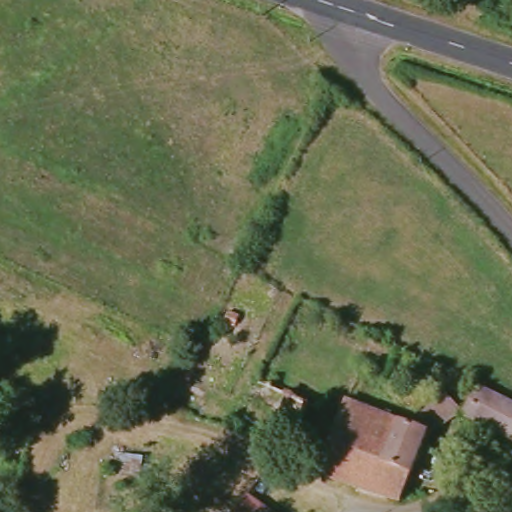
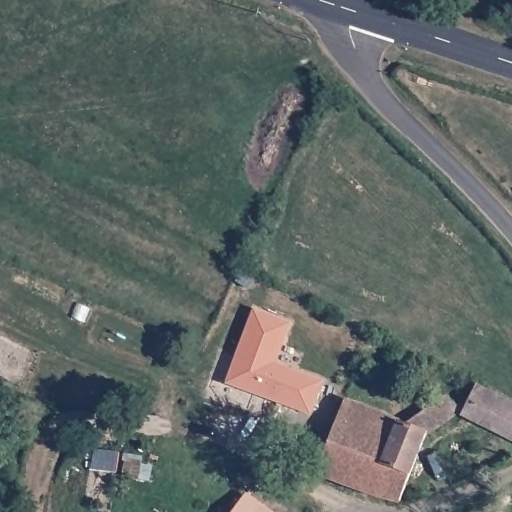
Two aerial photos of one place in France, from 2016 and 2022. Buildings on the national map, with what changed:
new [(228,382),(255,310),(291,323),(275,364),(324,381),(311,413),(228,382)]
unchanged [(512,402),(512,437),(467,412),(480,385),(512,402)]
unchanged [(347,400),(401,422),(408,424),(448,396),(462,409),(429,433),(428,433),(401,501),(376,495),(321,474),(347,400)]
unchanged [(270,512),(235,512),(246,496),(270,512)]

